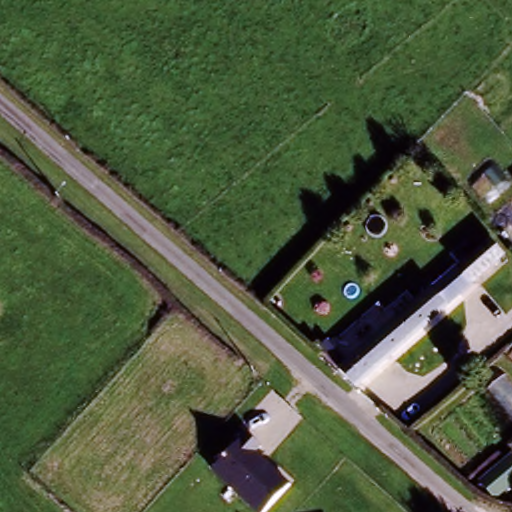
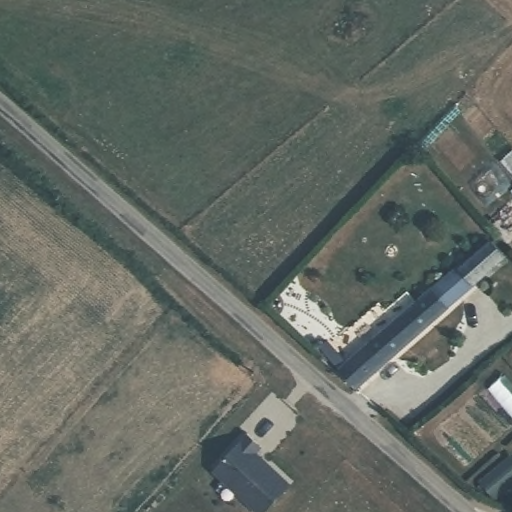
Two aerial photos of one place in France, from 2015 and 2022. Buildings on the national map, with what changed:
unchanged [(408,310),(404,305),(429,283),(434,287),(487,241),(503,258),(358,387),(339,372),(408,310)]
unchanged [(263,452),(259,457),(290,485),(265,512),(255,512),(212,472),(246,433),(263,452)]

